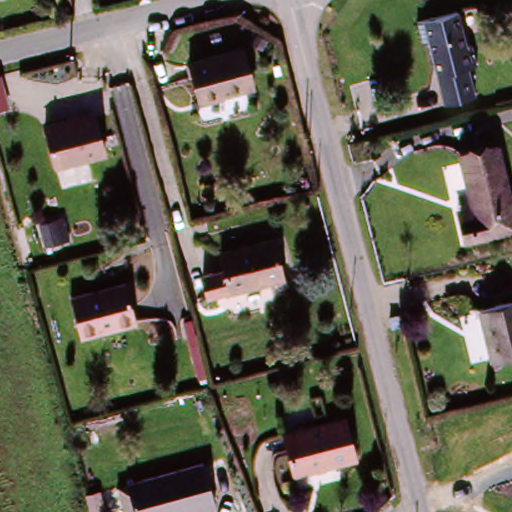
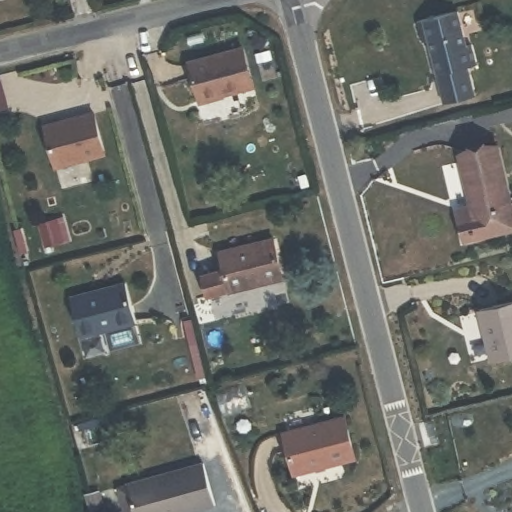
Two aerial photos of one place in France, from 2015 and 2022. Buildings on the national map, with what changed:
unchanged [(422,48),(415,21),(460,11),(467,42),(475,40),(482,65),(475,67),(480,97),(442,105),(439,92),(428,46),(422,48)]
unchanged [(242,91),(195,102),(185,61),(233,50),(242,91)]
unchanged [(0,79),(10,109),(0,111),(0,79)]
unchanged [(103,157),(52,170),(41,126),(92,113),(103,157)]
unchanged [(464,159),(503,150),(512,187),(512,232),(470,243),(465,221),(462,211),(475,209),(464,159)]
unchanged [(27,226),(46,220),(53,243),(35,249),(27,226)]
unchanged [(227,274),(223,258),(278,244),(287,281),(232,295),(210,300),(205,280),(227,274)]
unchanged [(127,280),(137,322),(79,335),(70,293),(127,280)]
unchanged [(480,309),(512,301),(512,353),(490,358),(480,309)]
unchanged [(293,476),(282,432),(347,417),(357,460),(293,476)]
unchanged [(203,512),(133,512),(125,484),(203,464),(215,509),(203,512)]

